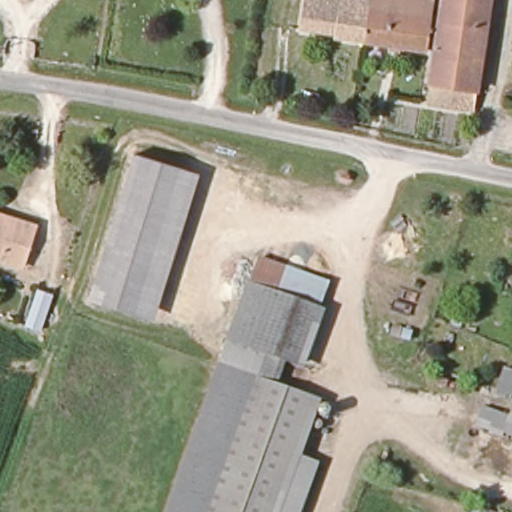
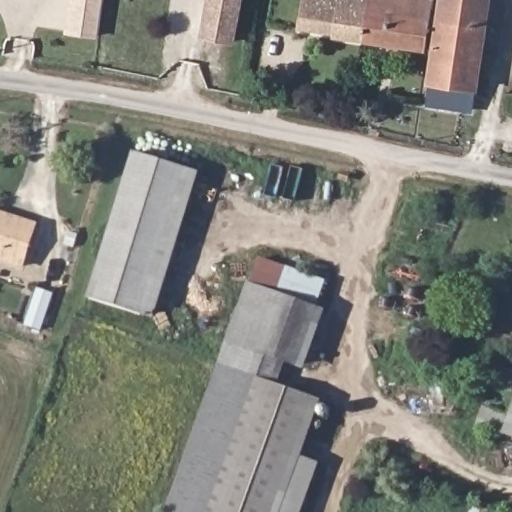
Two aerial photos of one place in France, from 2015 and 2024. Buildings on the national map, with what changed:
new [(70,0),(103,0),(98,39),(66,34),(70,0)]
new [(202,39),(209,0),(243,0),(235,45),(202,39)]
unchanged [(333,34),(298,28),(303,0),(363,0),(357,41),(332,37),(333,34)]
unchanged [(432,0),(426,51),(357,41),(363,0),(432,0)]
unchanged [(424,103),(431,52),(426,51),(432,0),(484,0),(473,91),(471,110),(445,106),(424,103)]
unchanged [(151,317),(99,302),(141,157),(194,172),(151,317)]
unchanged [(35,223),(24,265),(0,257),(0,211),(35,223)]
unchanged [(251,281),(261,256),(326,277),(316,304),(251,281)]
unchanged [(251,281),(316,304),(293,361),(284,358),(229,340),(251,281)]
unchanged [(54,292),(41,331),(23,325),(36,287),(54,292)]
unchanged [(215,378),(229,340),(284,358),(275,383),(268,381),(220,512),(166,512),(215,378)]
unchanged [(319,401),(300,452),(322,459),(302,512),(220,512),(268,381),(275,383),(319,401)]
unchanged [(484,425),(491,408),(512,415),(512,432),(511,435),(484,425)]
unchanged [(470,502),(500,512),(466,512),(470,502)]

